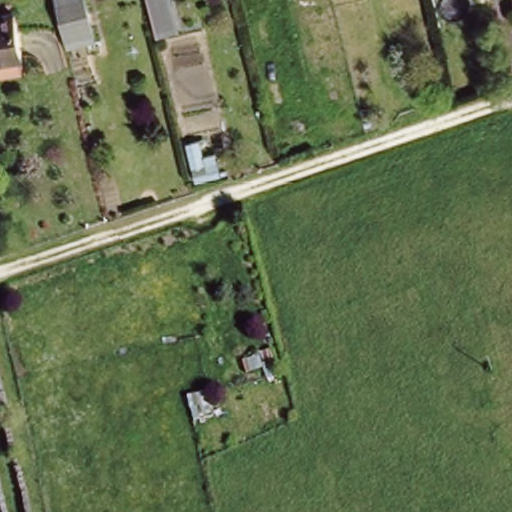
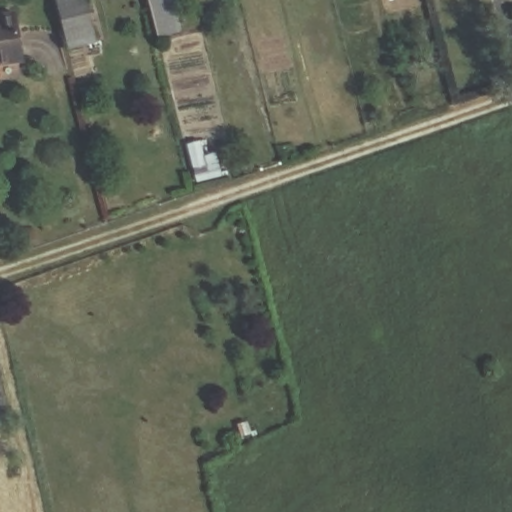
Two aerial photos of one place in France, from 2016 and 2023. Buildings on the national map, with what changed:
unchanged [(68,49),(56,0),(87,0),(97,41),(68,49)]
unchanged [(165,37),(157,39),(155,27),(148,0),(170,0),(177,28),(163,31),(165,37)]
unchanged [(23,66),(0,70),(0,23),(15,21),(23,66)]
unchanged [(200,141),(203,157),(217,154),(221,175),(193,182),(184,146),(200,141)]
unchanged [(241,359),(272,349),(276,365),(279,377),(267,381),(263,369),(245,373),(241,359)]
unchanged [(186,396),(212,388),(220,414),(192,421),(186,396)]

